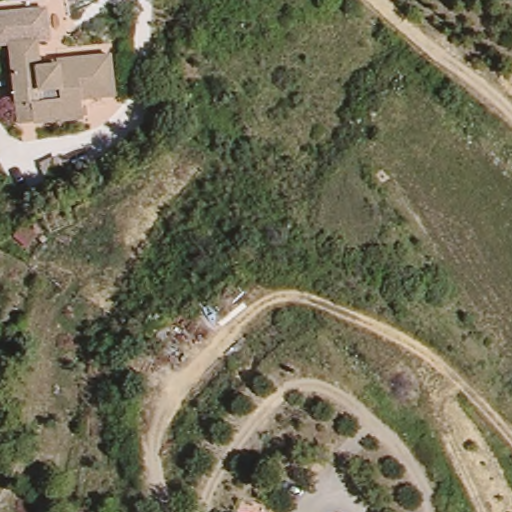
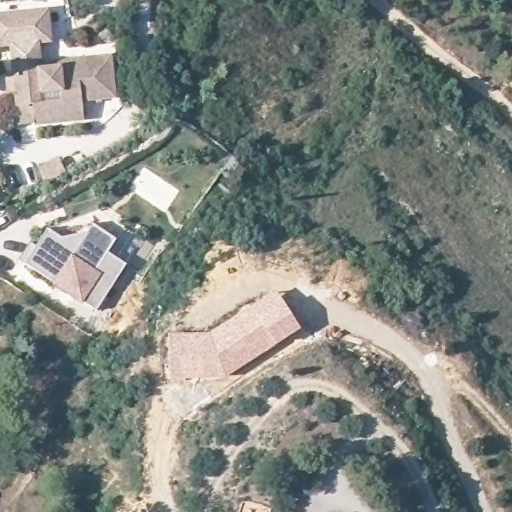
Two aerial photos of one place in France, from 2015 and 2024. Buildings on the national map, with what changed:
unchanged [(12,109),(15,46),(0,45),(0,15),(51,17),(50,47),(41,47),(40,69),(59,70),(113,71),(112,111),(78,110),(77,130),(27,128),(12,127),(12,109)]
demolished [(40,182),(57,170),(68,182),(49,196),(40,182)]
new [(47,228),(104,204),(122,215),(119,220),(143,237),(98,311),(25,263),(47,228)]
new [(204,331),(211,330),(276,290),(300,327),(227,375),(169,380),(167,333),(204,331)]

